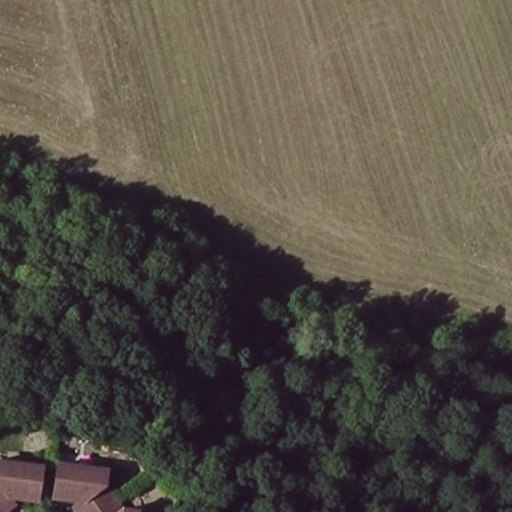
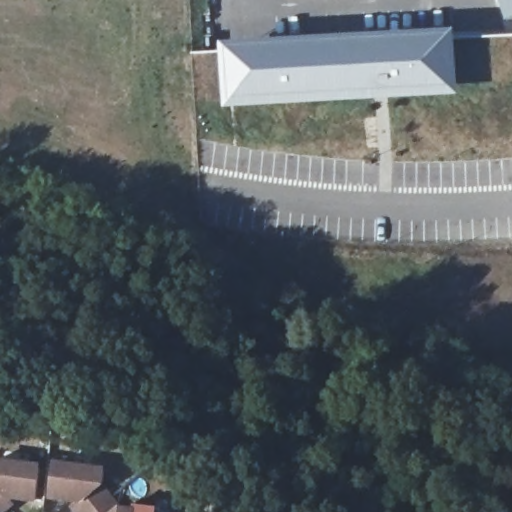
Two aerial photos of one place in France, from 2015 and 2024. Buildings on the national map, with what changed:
new [(460,97),(225,109),(222,45),(455,33),(460,97)]
unchanged [(31,502),(15,500),(9,492),(2,497),(9,506),(0,512),(0,464),(36,468),(31,502)]
unchanged [(70,512),(67,509),(76,502),(70,495),(63,501),(46,499),(51,465),(100,471),(99,485),(108,497),(89,512),(70,512)]
unchanged [(117,509),(131,512),(89,512),(108,497),(117,509)]

